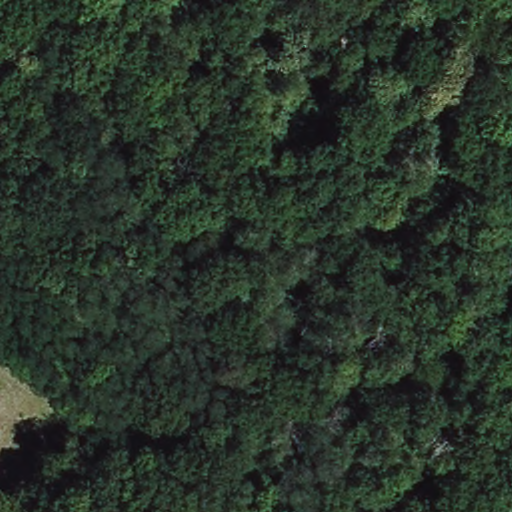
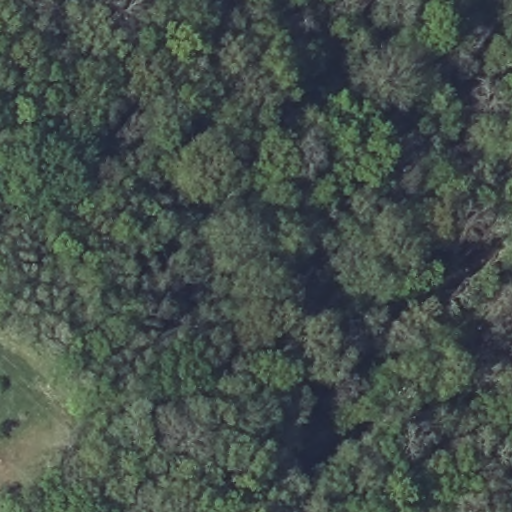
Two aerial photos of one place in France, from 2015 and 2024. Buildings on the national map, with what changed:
[]

